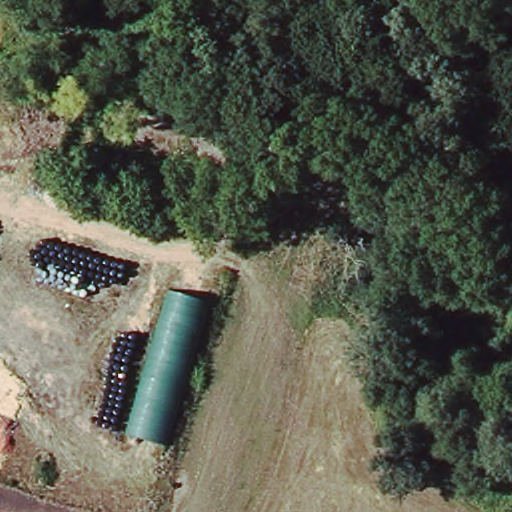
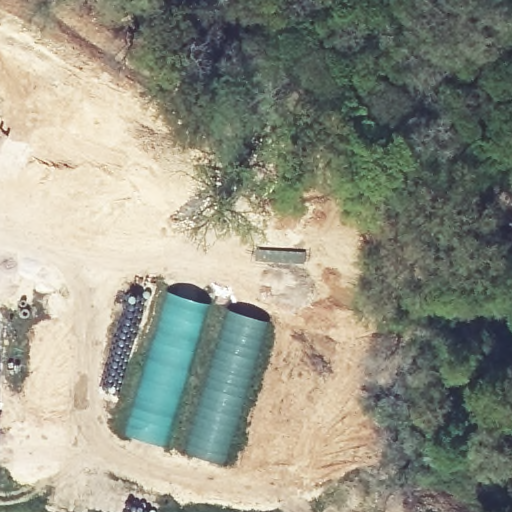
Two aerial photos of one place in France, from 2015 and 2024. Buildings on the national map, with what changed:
unchanged [(212,304),(167,445),(126,433),(169,290),(212,304)]
new [(225,309),(269,322),(248,389),(225,461),(183,449),(225,309)]

